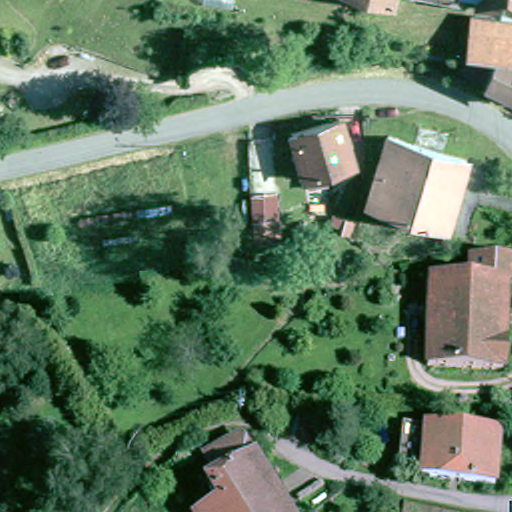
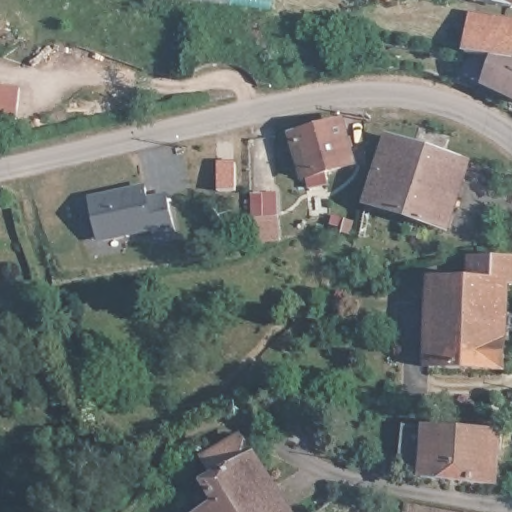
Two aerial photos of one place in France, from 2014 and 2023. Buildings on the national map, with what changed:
unchanged [(389,0),(395,0),(395,2),(389,0)]
unchanged [(462,0),(465,0),(465,1),(462,0)]
unchanged [(478,0),(512,0),(512,9),(478,5),(478,0)]
unchanged [(512,60),(472,54),(477,13),(512,18),(512,60)]
unchanged [(469,58),(470,54),(472,54),(512,60),(512,101),(489,90),(460,79),(465,60),(467,58),(469,58)]
unchanged [(342,121),(355,162),(307,176),(295,134),(342,121)]
unchanged [(472,160),(452,227),(416,217),(413,226),(403,224),(405,214),(374,205),(392,137),(472,160)]
new [(153,231),(98,242),(87,196),(145,183),(149,195),(168,193),(177,232),(155,237),(153,231)]
unchanged [(467,276),(466,265),(500,266),(512,266),(512,290),(500,290),(499,377),(425,374),(427,284),(427,278),(456,278),(456,276),(467,276)]
unchanged [(469,488),(469,481),(400,474),(404,426),(505,431),(500,484),(480,482),(480,490),(469,488)]
unchanged [(222,504),(210,485),(221,478),(209,458),(245,437),(292,512),(209,512),(222,504)]

